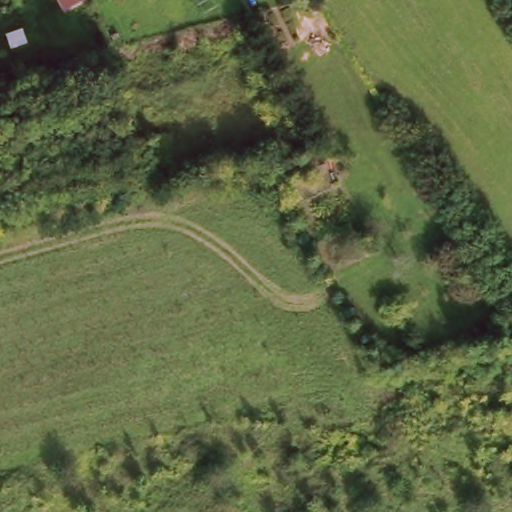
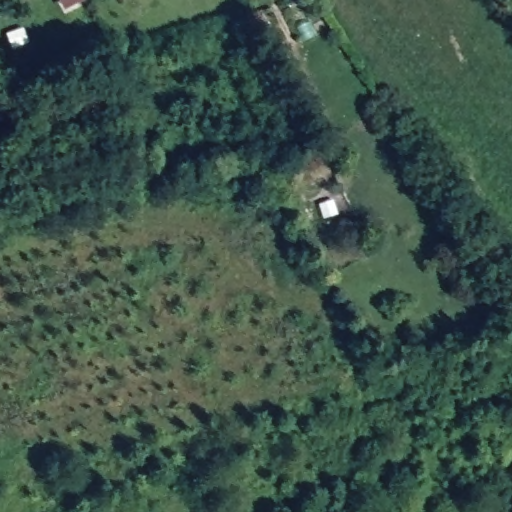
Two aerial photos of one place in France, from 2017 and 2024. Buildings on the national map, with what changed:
unchanged [(55,0),(84,0),(60,12),(55,0)]

